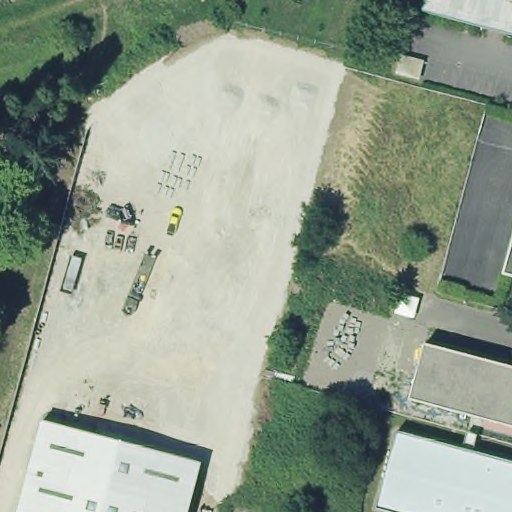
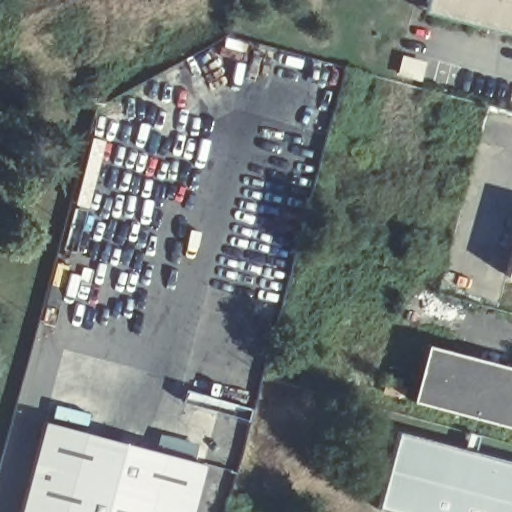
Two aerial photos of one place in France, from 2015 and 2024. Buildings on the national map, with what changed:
unchanged [(425,10),(428,0),(430,0),(512,22),(512,34),(425,10)]
unchanged [(430,0),(512,0),(512,22),(430,0)]
unchanged [(504,273),(512,243),(512,276),(504,273)]
unchanged [(484,421),(472,418),(411,402),(425,348),(512,370),(512,428),(484,421)]
unchanged [(45,421),(204,462),(196,492),(37,450),(45,421)]
unchanged [(380,510),(399,434),(464,450),(475,453),(512,463),(512,512),(385,512),(380,510)]
unchanged [(191,512),(22,512),(37,450),(196,492),(191,512)]

